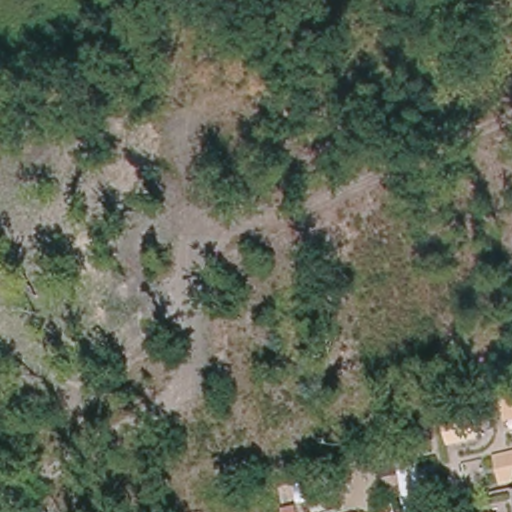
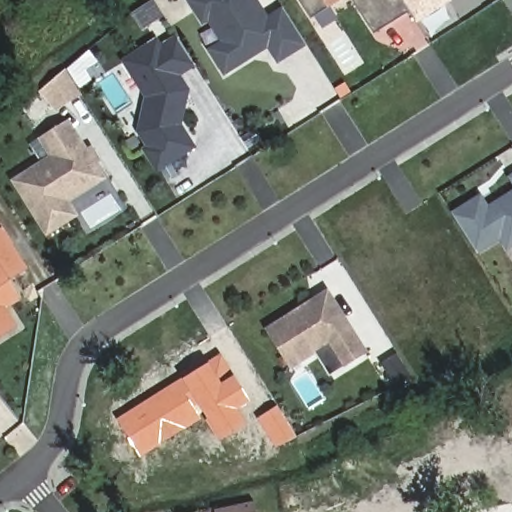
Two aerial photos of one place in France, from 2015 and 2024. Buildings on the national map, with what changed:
new [(226,42),(216,25),(218,18),(212,10),(203,16),(192,0),(257,0),(267,15),(284,4),(306,40),(279,57),(268,40),(262,44),(261,47),(244,59),(226,70),(214,50),(226,42)]
new [(306,0),(346,0),(317,18),(306,0)]
new [(380,34),(359,0),(406,0),(414,12),(380,34)]
new [(406,0),(442,0),(417,17),(406,0)]
new [(183,77),(191,91),(184,127),(197,148),(158,172),(144,150),(148,147),(138,132),(145,96),(123,60),(159,39),(162,44),(176,36),(197,67),(183,77)]
new [(54,113),(40,89),(69,70),(83,95),(54,113)]
new [(94,145),(104,162),(99,165),(108,180),(71,203),(80,218),(46,236),(11,181),(51,156),(39,138),(71,119),(89,149),(94,145)]
new [(509,176),(512,174),(512,182),(509,176)]
new [(479,255),(453,213),(482,195),(488,206),(512,193),(512,248),(507,251),(501,241),(479,255)]
new [(3,281),(13,297),(0,306),(0,239),(20,270),(3,281)]
new [(331,377),(317,354),(291,370),(266,330),(330,289),(370,353),(345,368),(331,377)]
new [(0,321),(0,309),(6,318),(0,321)]
new [(119,419),(184,378),(208,362),(221,354),(235,376),(251,403),(240,410),(248,424),(221,442),(198,405),(195,407),(202,418),(141,456),(119,419)]
demolished [(484,471),(481,455),(512,451),(512,466),(484,471)]
demolished [(408,510),(397,462),(416,456),(425,508),(408,510)]
demolished [(492,504),(512,501),(512,512),(493,512),(492,504)]

